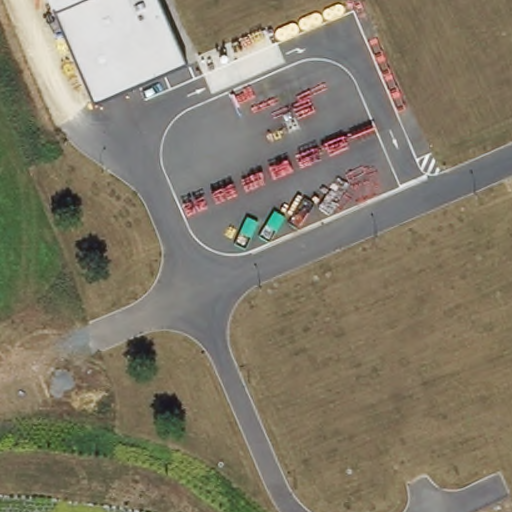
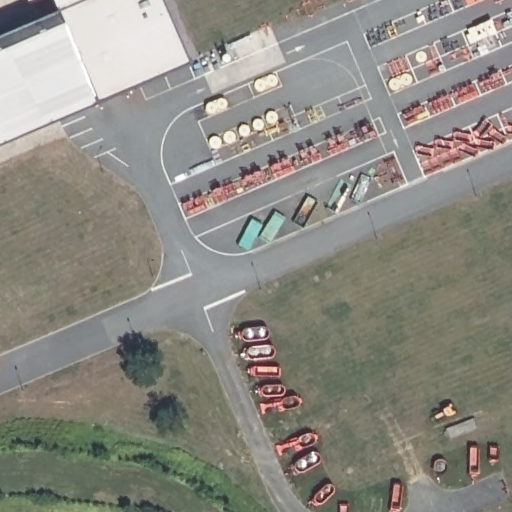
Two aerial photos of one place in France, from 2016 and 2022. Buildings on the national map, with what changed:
unchanged [(50,0),(156,0),(184,65),(95,102),(55,12),(50,0)]
new [(95,102),(0,142),(0,52),(61,27),(95,102)]

